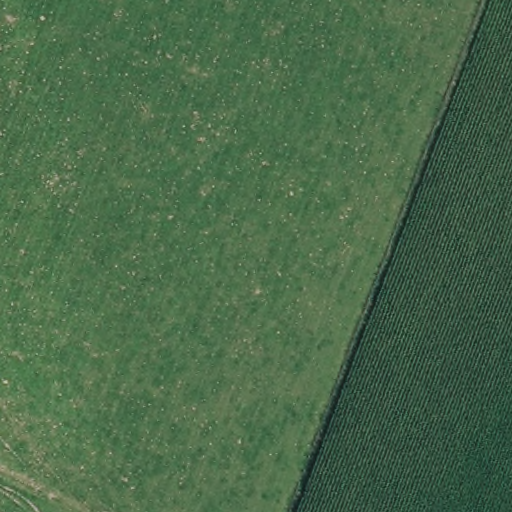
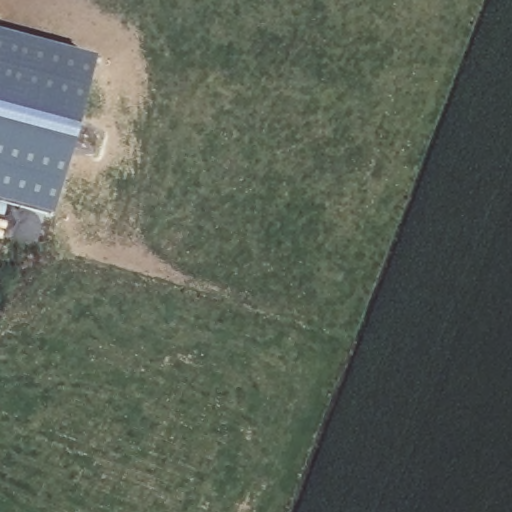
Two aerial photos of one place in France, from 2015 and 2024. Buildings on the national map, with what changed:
new [(95,60),(52,216),(0,201),(0,34),(95,60)]

